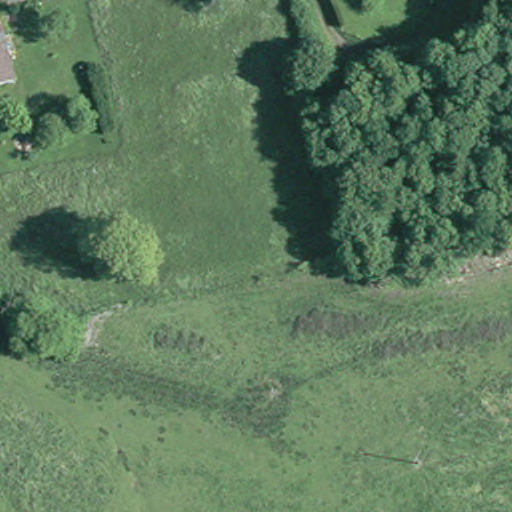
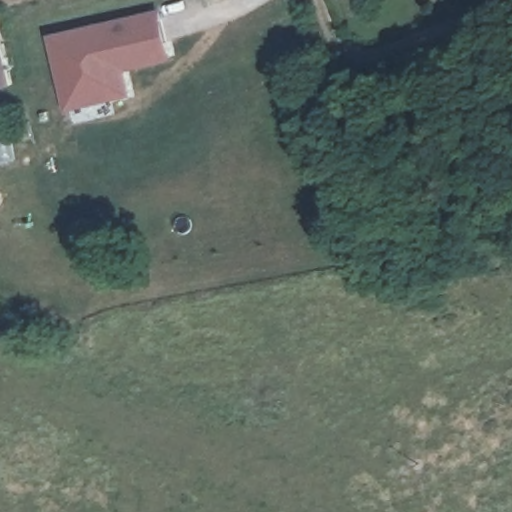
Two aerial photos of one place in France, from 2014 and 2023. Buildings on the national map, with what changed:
new [(172,61),(129,70),(135,95),(68,109),(50,33),(162,8),(172,61)]
unchanged [(0,39),(0,35),(1,39),(0,39)]
unchanged [(0,81),(0,39),(1,39),(9,79),(0,81)]

